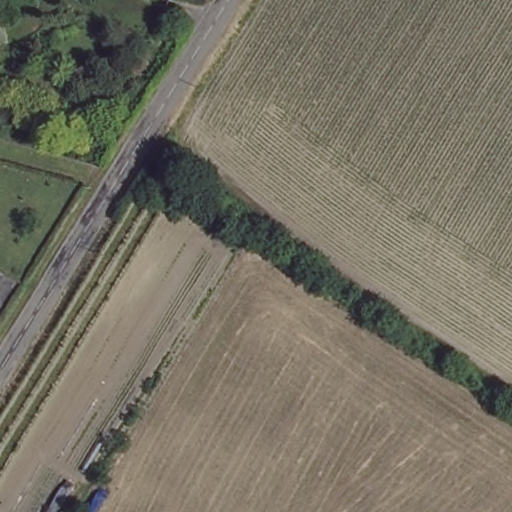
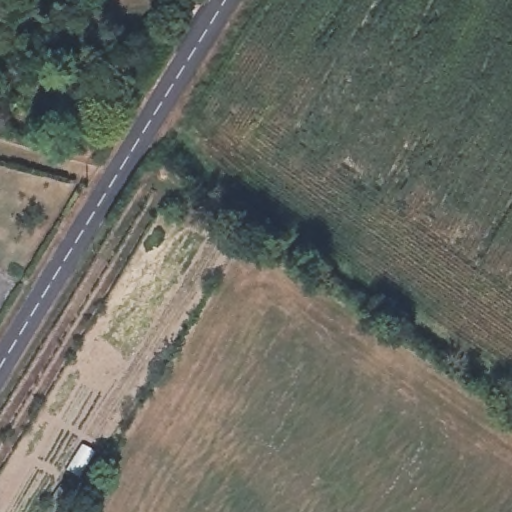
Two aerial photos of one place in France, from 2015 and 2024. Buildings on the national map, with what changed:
[]

